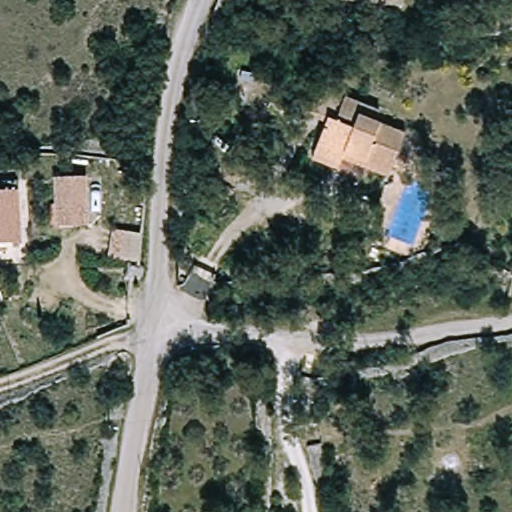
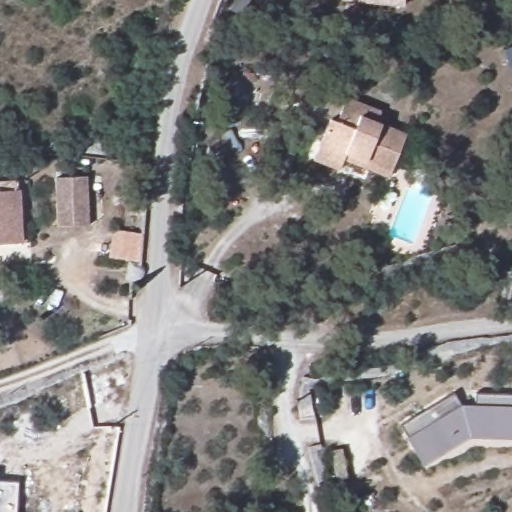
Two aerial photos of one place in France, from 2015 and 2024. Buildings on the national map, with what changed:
unchanged [(340,2),(340,0),(405,0),(405,7),(340,2)]
unchanged [(329,126),(339,129),(346,104),(383,115),(380,125),(406,132),(393,176),(344,161),(341,170),(318,164),(329,126)]
unchanged [(86,177),(89,224),(58,226),(55,179),(86,177)]
unchanged [(24,246),(0,247),(0,193),(22,192),(24,246)]
unchanged [(151,236),(150,242),(148,262),(121,260),(124,232),(151,236)]
new [(458,400),(512,403),(512,443),(458,440),(441,451),(445,457),(425,470),(410,445),(411,444),(403,431),(458,400)]
new [(18,512),(0,512),(0,478),(20,480),(18,512)]

